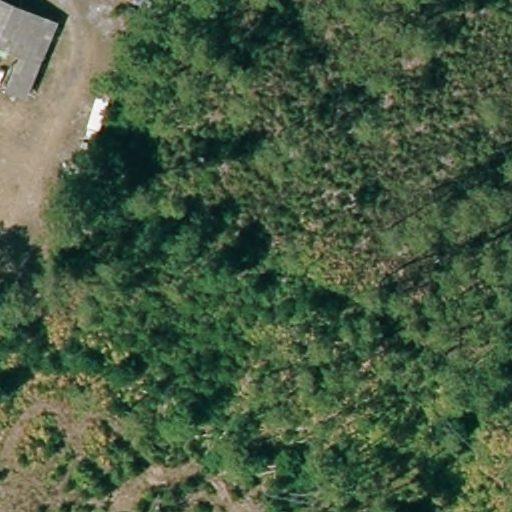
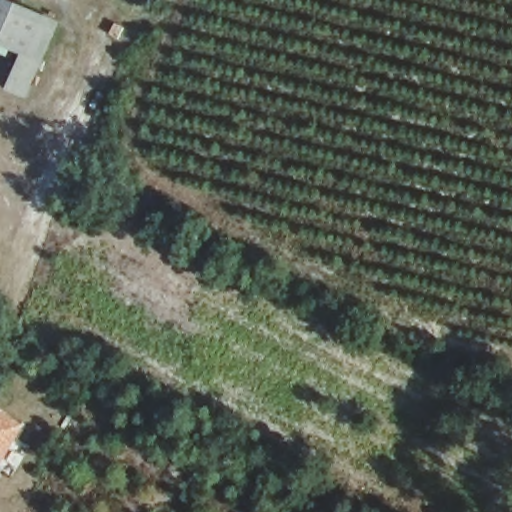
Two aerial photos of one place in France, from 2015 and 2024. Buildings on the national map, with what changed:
unchanged [(0,38),(0,0),(16,0),(57,17),(41,55),(0,38)]
new [(0,462),(0,408),(25,423),(0,462)]

